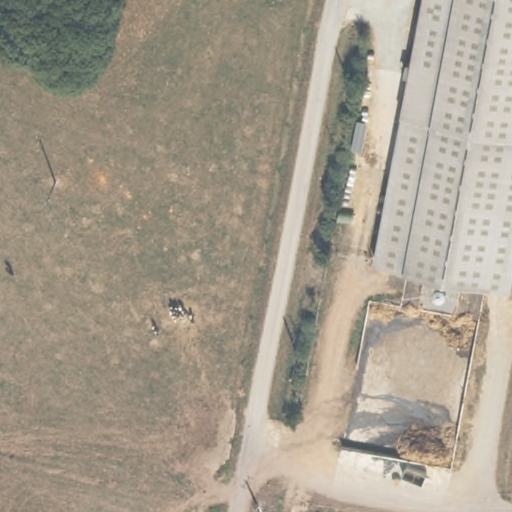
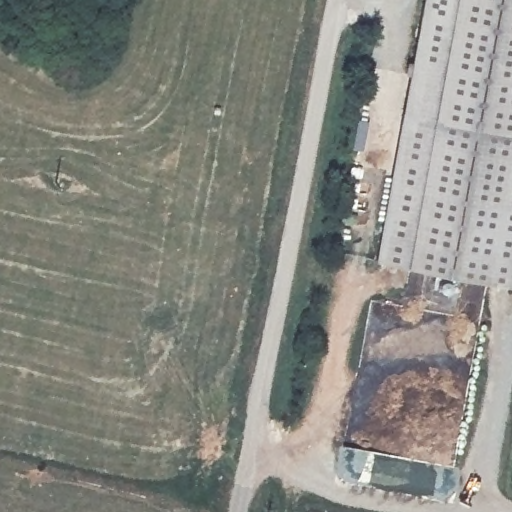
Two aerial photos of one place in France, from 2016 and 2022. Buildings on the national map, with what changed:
unchanged [(512,290),(377,265),(425,0),(512,0),(512,290)]

